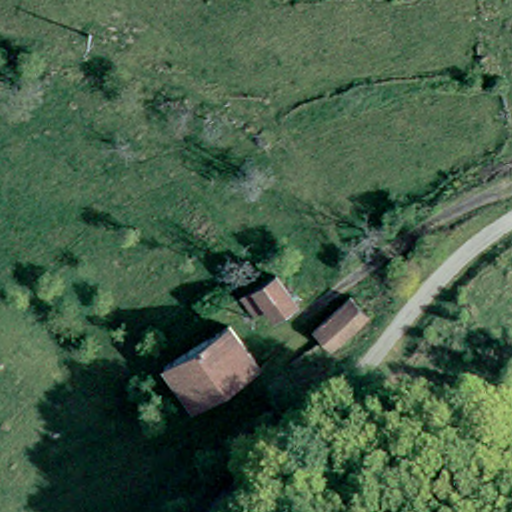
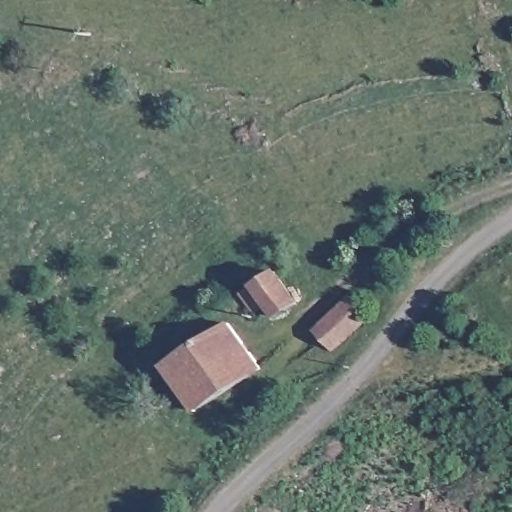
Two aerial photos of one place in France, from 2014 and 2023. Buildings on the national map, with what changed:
unchanged [(255,284),(275,269),(297,294),(275,309),(255,284)]
unchanged [(318,329),(353,297),(375,318),(338,349),(318,329)]
unchanged [(230,326),(263,373),(198,418),(166,373),(197,352),(190,343),(200,334),(207,343),(230,326)]

